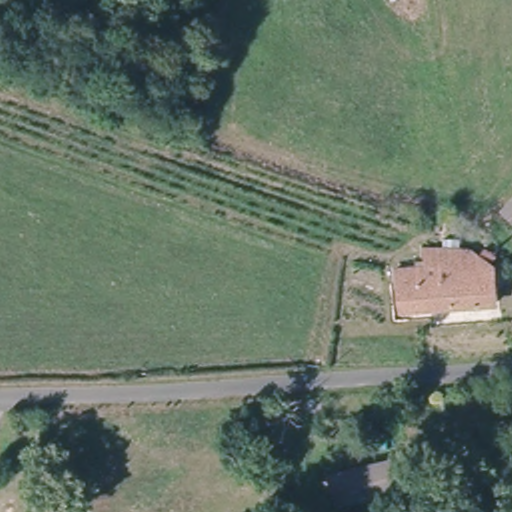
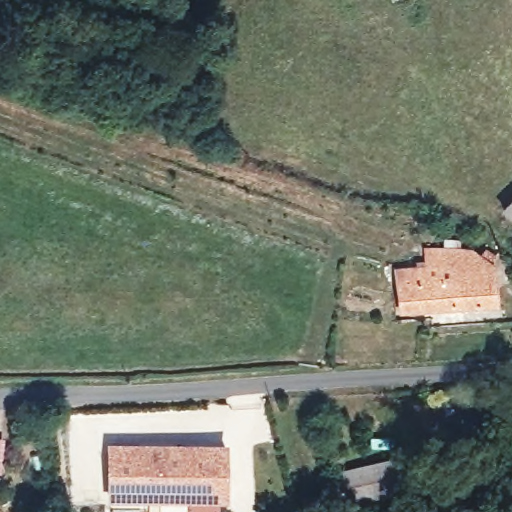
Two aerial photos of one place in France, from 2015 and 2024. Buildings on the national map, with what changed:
unchanged [(477,195),(499,181),(508,194),(488,210),(477,195)]
unchanged [(506,304),(399,312),(393,263),(427,262),(426,244),(472,244),(500,259),(506,304)]
new [(229,442),(227,501),(106,502),(107,442),(229,442)]
unchanged [(330,471),(416,444),(425,471),(398,480),(399,496),(370,508),(365,489),(338,499),(330,471)]

